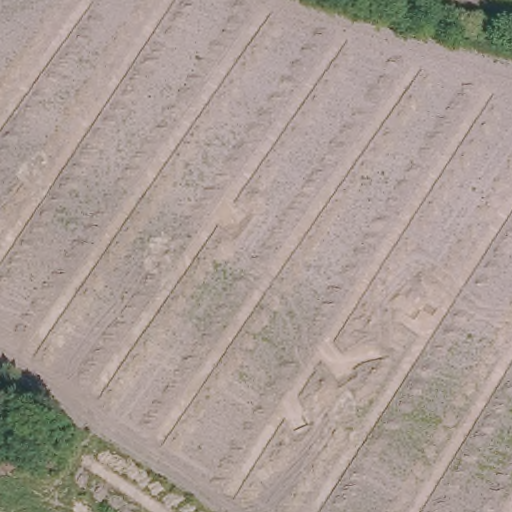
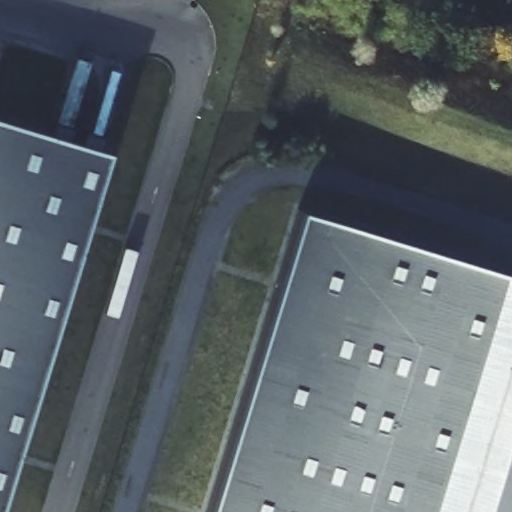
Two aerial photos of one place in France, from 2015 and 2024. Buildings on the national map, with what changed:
unchanged [(0,473),(0,106),(100,137),(0,473)]
new [(512,274),(512,512),(207,512),(299,210),(512,274)]

